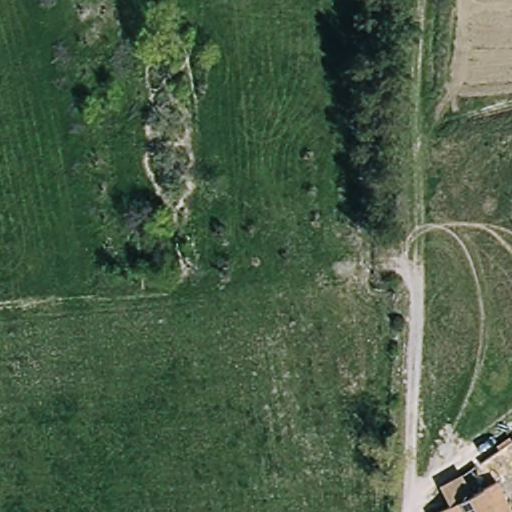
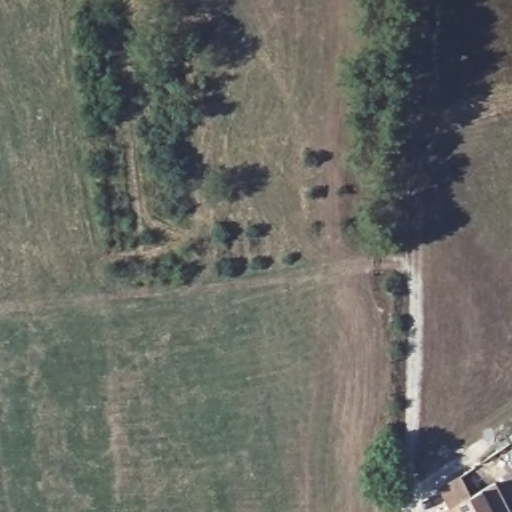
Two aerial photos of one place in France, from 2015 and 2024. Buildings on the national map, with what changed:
unchanged [(437,488),(457,477),(467,496),(480,489),(493,482),(508,512),(437,512),(447,506),(437,488)]

